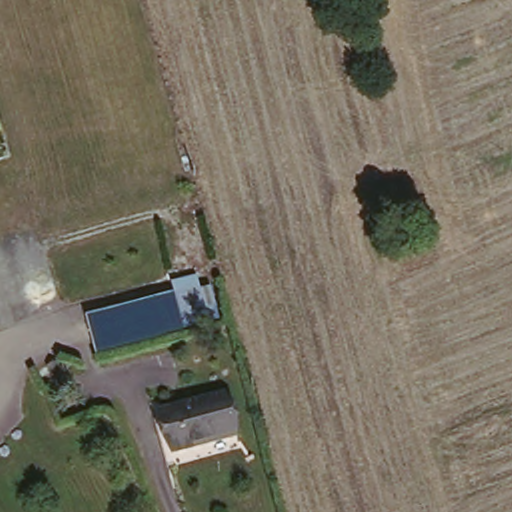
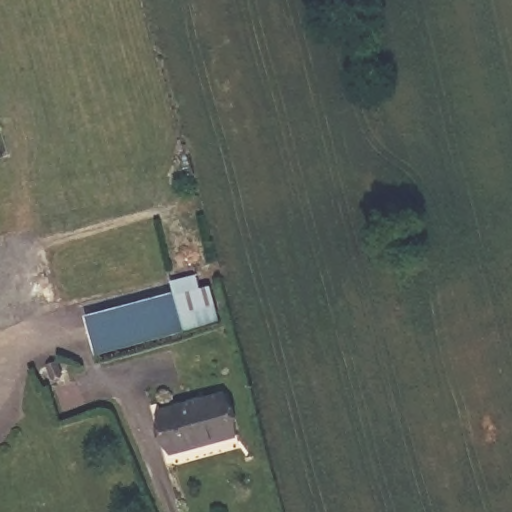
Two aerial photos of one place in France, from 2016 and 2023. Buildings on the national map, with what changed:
unchanged [(90,320),(215,283),(230,333),(101,368),(90,320)]
unchanged [(0,396),(0,371),(10,392),(0,396)]
unchanged [(222,395),(233,435),(168,452),(157,412),(222,395)]

